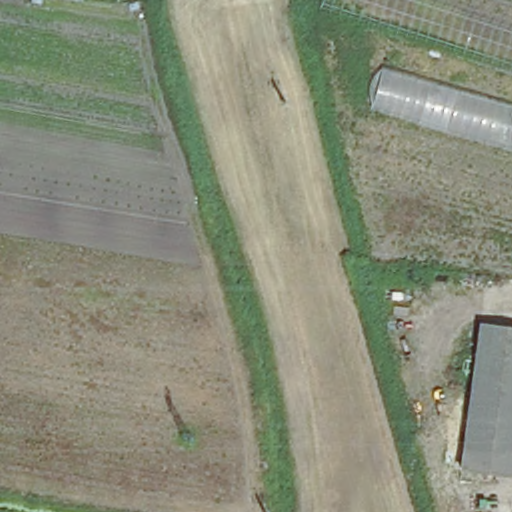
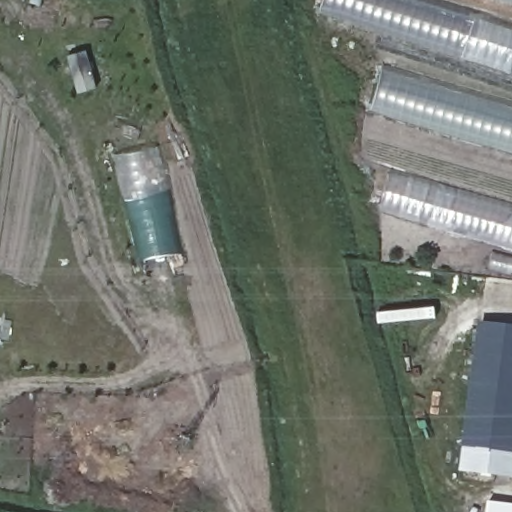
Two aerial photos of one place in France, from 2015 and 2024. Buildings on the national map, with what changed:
unchanged [(320,9),(323,0),(440,0),(512,24),(512,70),(320,9)]
unchanged [(509,0),(512,0),(512,1),(509,0)]
unchanged [(512,105),(512,147),(373,106),(386,67),(512,105)]
new [(157,147),(179,254),(142,260),(116,155),(157,147)]
new [(380,212),(395,167),(512,202),(512,251),(380,212)]
unchanged [(461,463),(475,336),(512,340),(512,468),(461,463)]
new [(512,506),(512,512),(487,512),(488,503),(512,506)]

